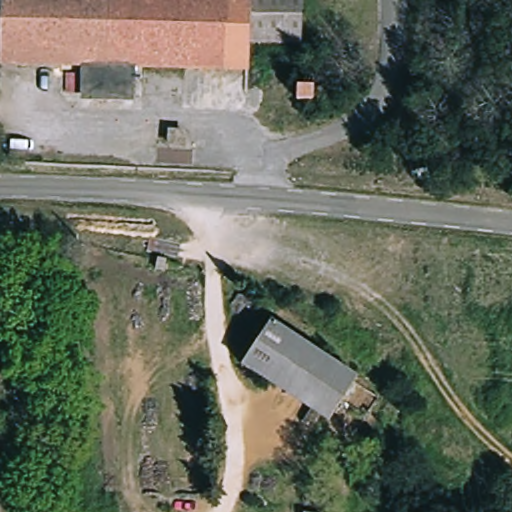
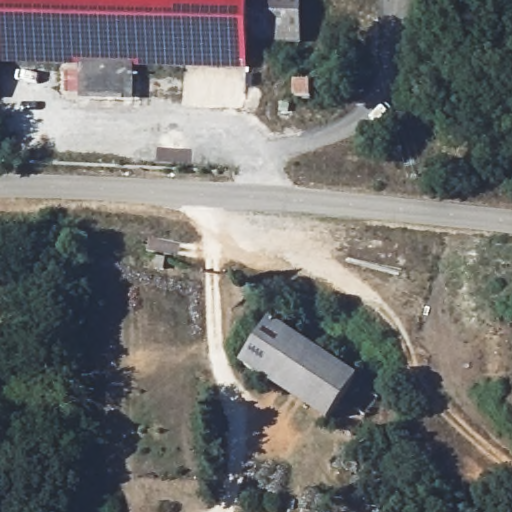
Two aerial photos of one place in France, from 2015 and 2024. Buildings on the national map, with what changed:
unchanged [(2,0),(297,0),(295,48),(241,45),(239,69),(119,66),(82,65),(0,63),(0,23),(2,0)]
unchanged [(115,95),(80,93),(82,65),(119,66),(115,95)]
unchanged [(321,424),(235,365),(268,320),(355,378),(321,424)]

